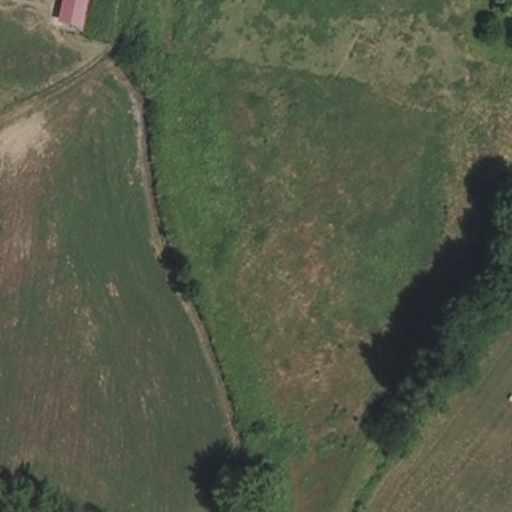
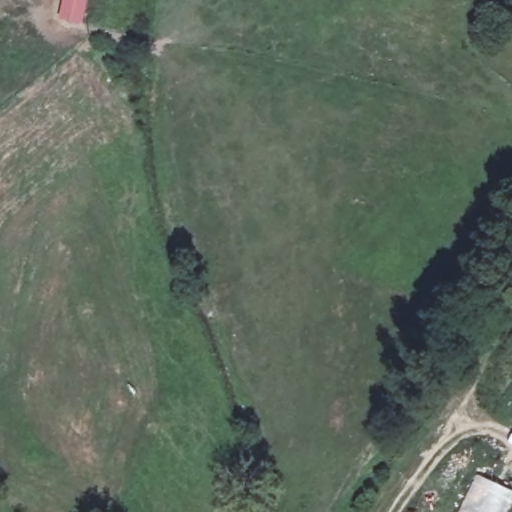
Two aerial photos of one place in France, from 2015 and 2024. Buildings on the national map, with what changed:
unchanged [(85,0),(81,25),(58,19),(61,0),(85,0)]
new [(478,476),(512,494),(512,512),(462,512),(478,476)]

